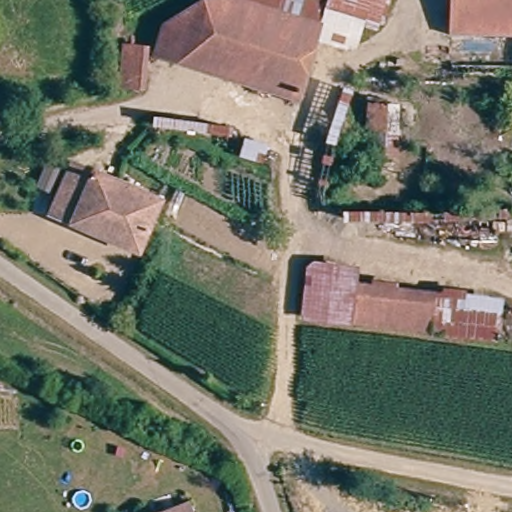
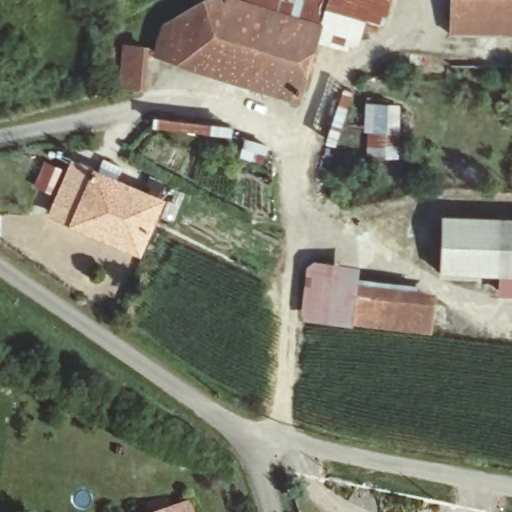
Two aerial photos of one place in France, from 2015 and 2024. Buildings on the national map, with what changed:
unchanged [(327,33),(308,98),(166,53),(175,24),(206,5),(206,3),(219,0),(337,0),(327,33)]
unchanged [(353,41),(327,33),(337,0),(392,0),(387,20),(362,13),(362,14),(353,41)]
unchanged [(453,0),(512,0),(512,36),(452,36),(453,0)]
unchanged [(131,86),(135,46),(156,48),(152,88),(131,86)]
new [(401,104),(398,159),(366,157),(367,103),(401,104)]
unchanged [(117,241),(119,235),(92,223),(89,230),(51,213),(72,163),(159,201),(137,251),(117,241)]
new [(438,274),(442,216),(501,219),(500,277),(438,274)]
new [(501,219),(512,219),(512,297),(499,296),(501,219)]
unchanged [(303,312),(310,257),(316,257),(352,262),(350,281),(346,317),(313,313),(303,312)]
unchanged [(350,281),(429,290),(425,327),(346,317),(350,281)]
unchanged [(183,512),(168,512),(181,507),(183,512)]

